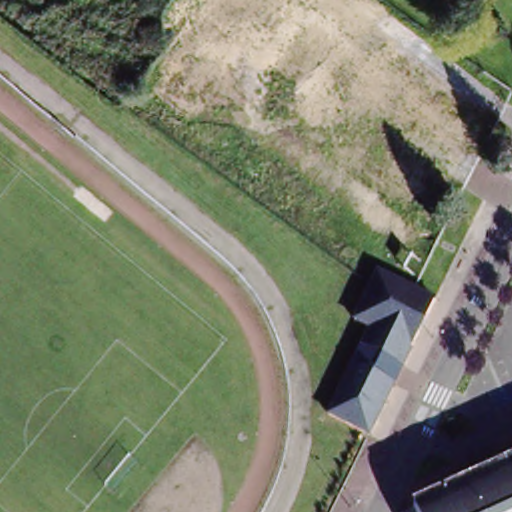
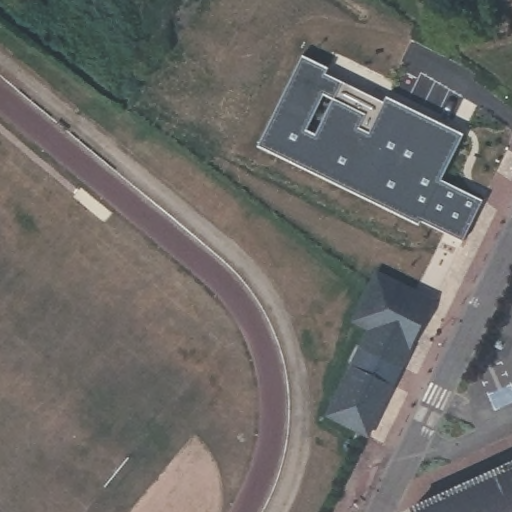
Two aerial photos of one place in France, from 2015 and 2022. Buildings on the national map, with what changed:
new [(421,223),(259,146),(302,55),(328,67),(326,73),(384,100),(386,95),(465,131),(442,177),(485,197),(465,240),(422,220),(421,223)]
unchanged [(367,431),(329,412),(355,359),(363,362),(372,345),(365,341),(374,324),(360,317),(383,267),(438,293),(405,361),(395,359),(388,376),(393,377),(395,378),(387,397),(380,395),(376,393),(371,407),(375,417),(367,431)]
unchanged [(512,466),(512,512),(410,512),(512,466)]

